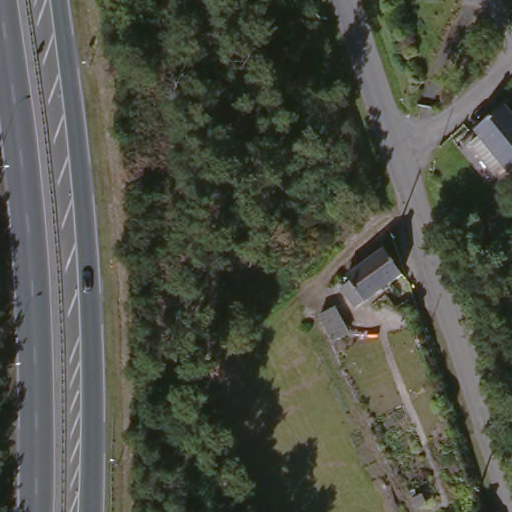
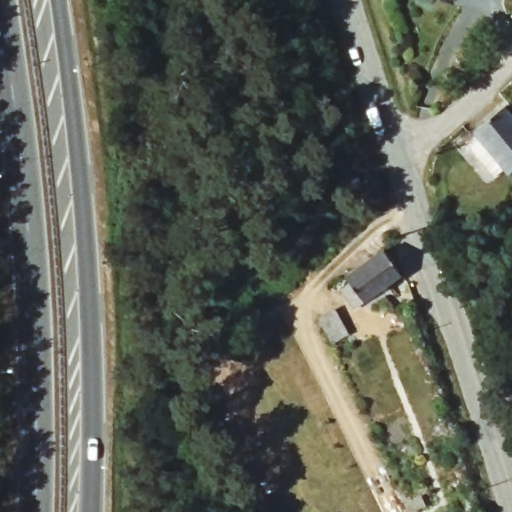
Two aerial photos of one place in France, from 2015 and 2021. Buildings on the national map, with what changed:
unchanged [(468,146),(478,138),(473,131),(504,106),(512,117),(512,171),(508,174),(504,169),(493,177),(468,146)]
unchanged [(384,255),(401,279),(354,313),(341,294),(350,287),(346,281),(384,255)]
unchanged [(346,334),(331,343),(318,318),(333,309),(346,334)]

